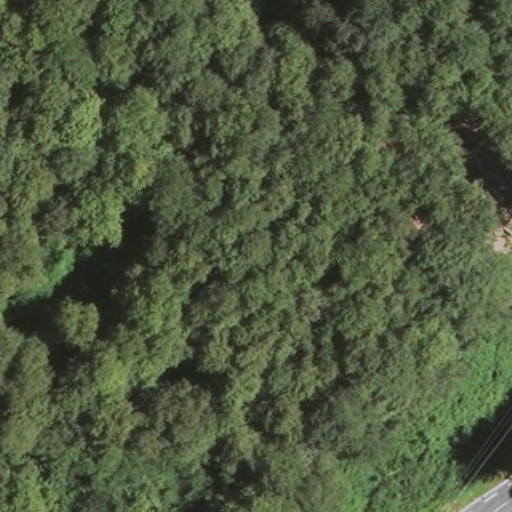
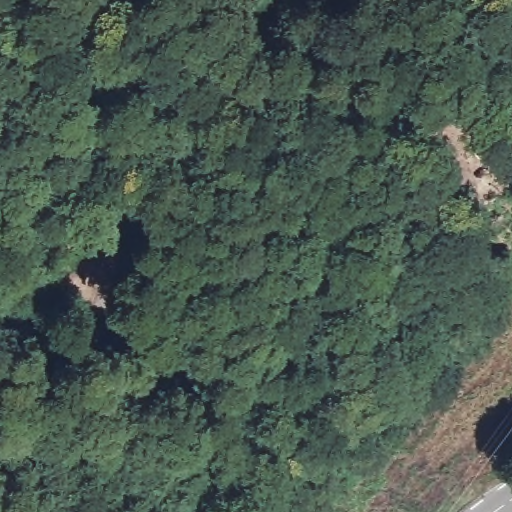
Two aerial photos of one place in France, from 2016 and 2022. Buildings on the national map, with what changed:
[]

